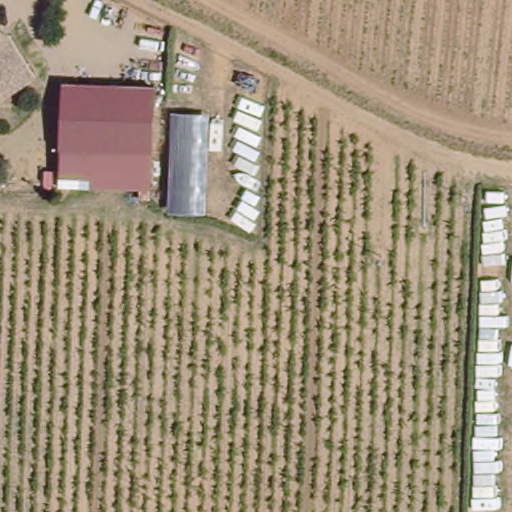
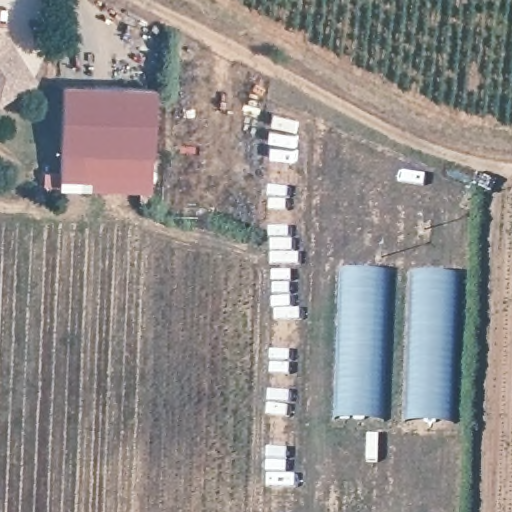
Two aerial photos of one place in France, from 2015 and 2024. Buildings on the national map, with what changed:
unchanged [(30,72),(0,90),(0,28),(5,31),(30,72)]
unchanged [(60,77),(150,83),(148,186),(94,186),(57,173),(60,77)]
new [(383,421),(335,419),(342,269),(390,272),(383,421)]
new [(453,424),(407,422),(412,272),(460,275),(453,424)]

